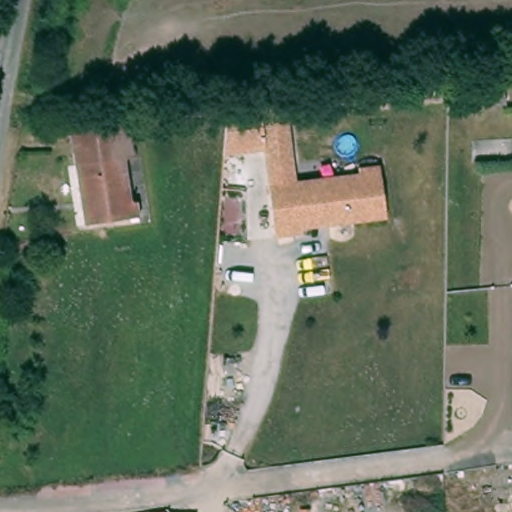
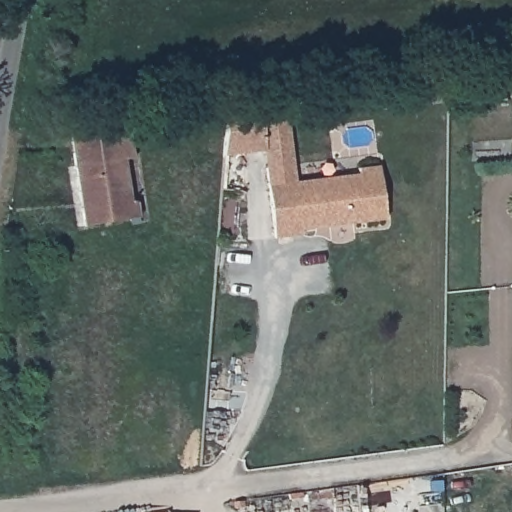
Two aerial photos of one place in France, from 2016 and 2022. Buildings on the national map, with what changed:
unchanged [(286,105),(296,182),(271,185),(266,149),(224,154),(227,110),(286,105)]
unchanged [(77,135),(131,120),(136,155),(127,157),(132,200),(138,197),(140,213),(89,227),(77,135)]
unchanged [(271,185),(296,182),(361,174),(360,166),(381,165),(388,217),(277,236),(271,185)]

